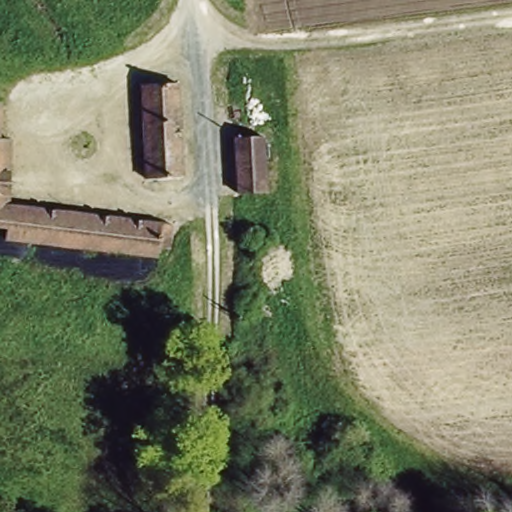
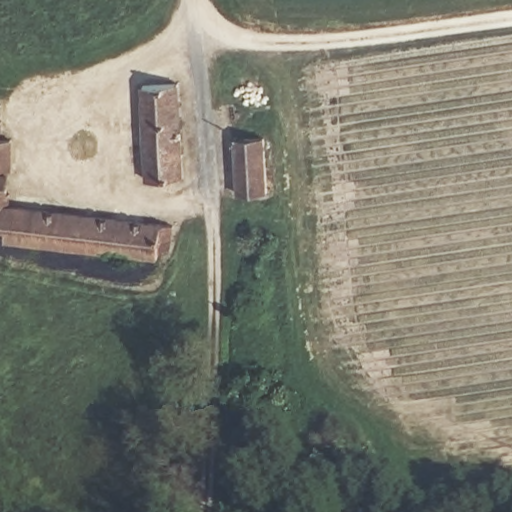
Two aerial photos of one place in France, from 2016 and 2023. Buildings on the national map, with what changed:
unchanged [(156,176),(146,177),(142,80),(177,79),(180,174),(175,175),(175,192),(156,192),(156,176)]
unchanged [(2,101),(1,134),(0,134),(0,101),(2,101)]
unchanged [(49,242),(0,239),(0,226),(0,134),(1,134),(5,133),(9,203),(177,220),(175,243),(160,242),(159,251),(49,242)]
unchanged [(238,137),(267,135),(271,192),(241,194),(238,137)]

